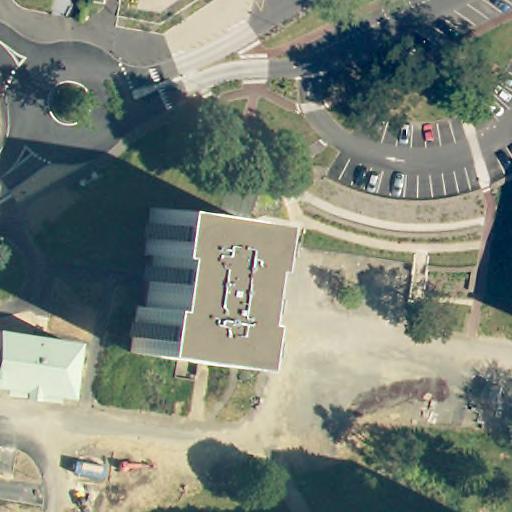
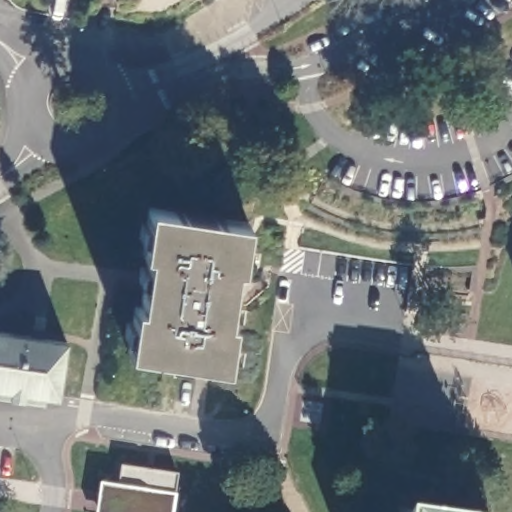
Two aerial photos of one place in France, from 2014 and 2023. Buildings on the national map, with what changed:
unchanged [(189,215),(248,223),(241,270),(232,269),(224,321),(234,322),(227,368),(214,366),(197,363),(126,353),(133,307),(142,308),(151,256),(142,255),(149,209),(189,215)]
unchanged [(0,387),(0,331),(5,332),(70,341),(64,381),(62,395),(49,393),(0,387)]
new [(176,496),(173,512),(97,512),(101,484),(118,487),(121,466),(180,475),(176,496)]

